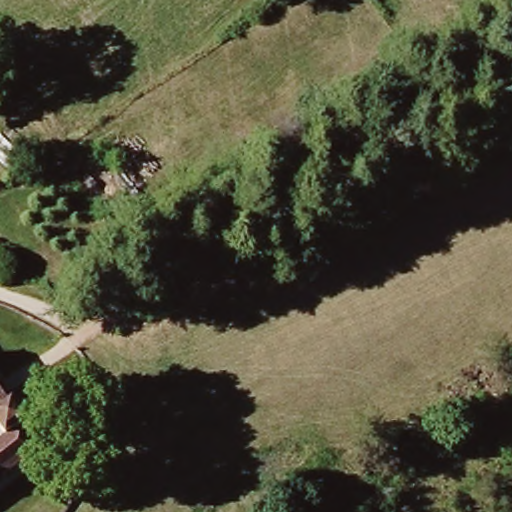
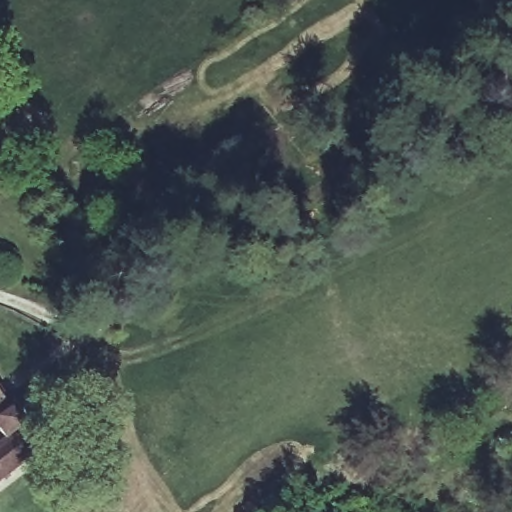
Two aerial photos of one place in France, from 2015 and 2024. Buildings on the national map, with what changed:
unchanged [(0,427),(0,396),(5,393),(20,414),(6,425),(23,446),(0,464),(0,429),(1,428),(0,427)]

